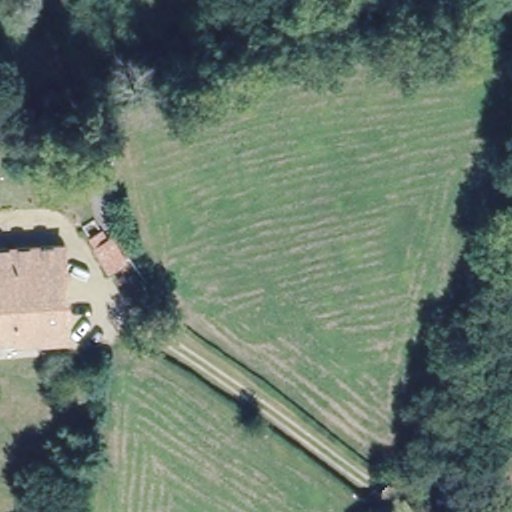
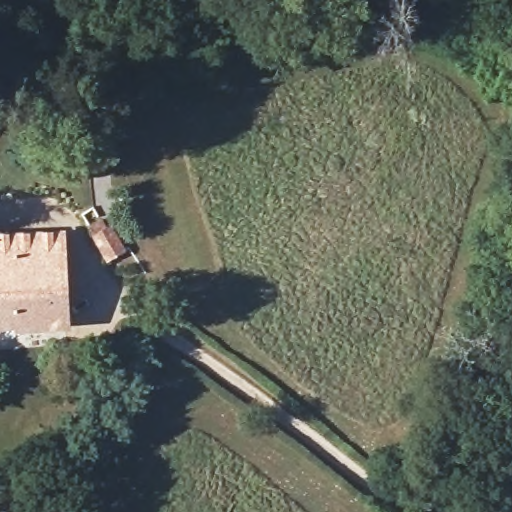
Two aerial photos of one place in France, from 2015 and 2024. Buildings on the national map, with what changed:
unchanged [(104,144),(102,169),(87,167),(89,143),(104,144)]
unchanged [(102,222),(107,230),(111,229),(124,251),(109,260),(90,229),(102,222)]
unchanged [(57,238),(61,327),(0,329),(0,241),(57,238)]

